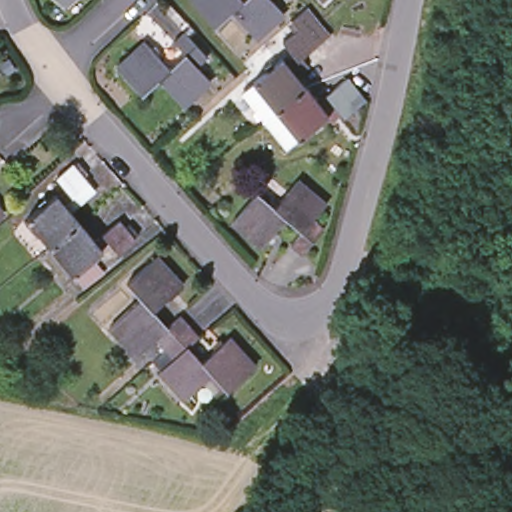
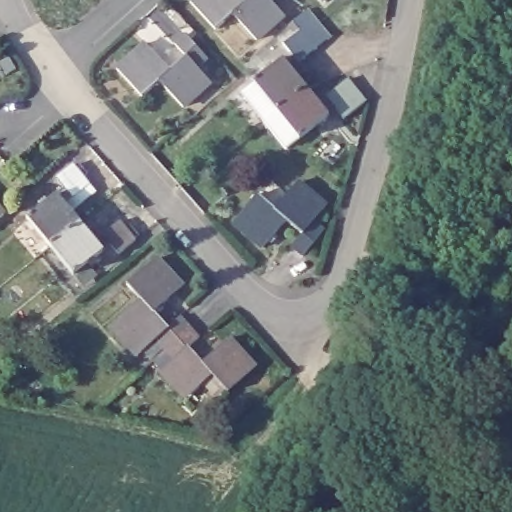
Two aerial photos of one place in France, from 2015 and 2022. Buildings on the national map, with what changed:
unchanged [(63,0),(64,0),(63,1),(63,0)]
unchanged [(254,35),(231,9),(214,24),(193,0),(273,0),(282,10),(254,35)]
unchanged [(251,77),(249,75),(277,50),(286,42),(279,32),(294,21),(290,16),(306,6),(314,15),(324,27),(309,40),(296,51),(301,57),(290,66),(298,75),(299,77),(315,96),(325,89),(340,77),(356,96),(339,107),(335,102),(325,110),(322,106),(294,129),(283,139),(259,109),(240,86),(251,77)]
unchanged [(153,76),(137,91),(113,64),(141,38),(165,65),(180,51),(168,37),(179,27),(200,52),(190,61),(205,76),(177,102),(153,76)]
unchanged [(80,162),(87,170),(83,173),(89,180),(72,193),(57,175),(74,161),(77,165),(80,162)]
unchanged [(321,202),(308,217),(319,226),(297,252),(286,242),(297,229),(280,214),(257,241),(228,217),(252,190),(269,205),(293,177),(321,202)]
unchanged [(47,244),(23,216),(52,192),(76,221),(47,244)]
unchanged [(131,222),(140,233),(135,237),(119,250),(105,232),(121,219),(127,226),(131,222)]
unchanged [(98,247),(69,271),(47,244),(76,221),(98,247)]
unchanged [(159,345),(150,335),(132,351),(105,321),(135,295),(122,280),(151,254),(177,282),(149,307),(163,322),(175,312),(185,322),(159,345)]
unchanged [(194,332),(184,342),(198,357),(224,334),(250,362),(223,387),(208,371),(183,393),(158,366),(169,356),(159,345),(185,322),(194,332)]

